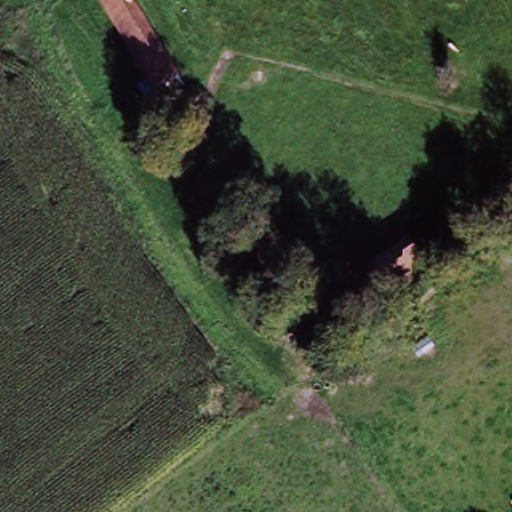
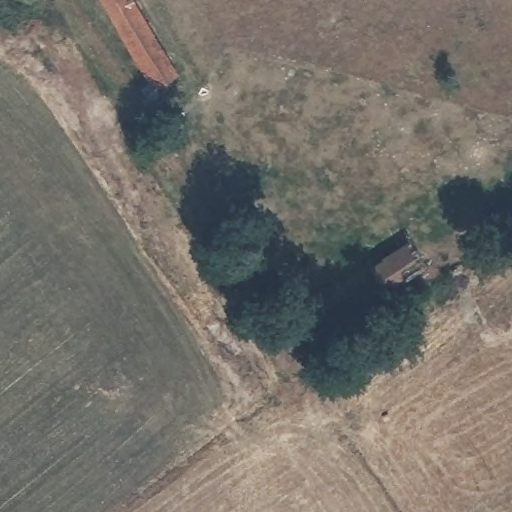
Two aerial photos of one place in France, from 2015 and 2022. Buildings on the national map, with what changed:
unchanged [(177,73),(149,92),(95,0),(135,0),(177,73)]
unchanged [(402,246),(419,268),(387,293),(371,270),(402,246)]

